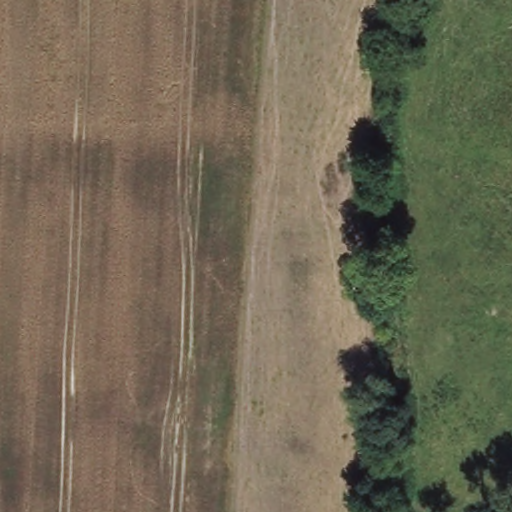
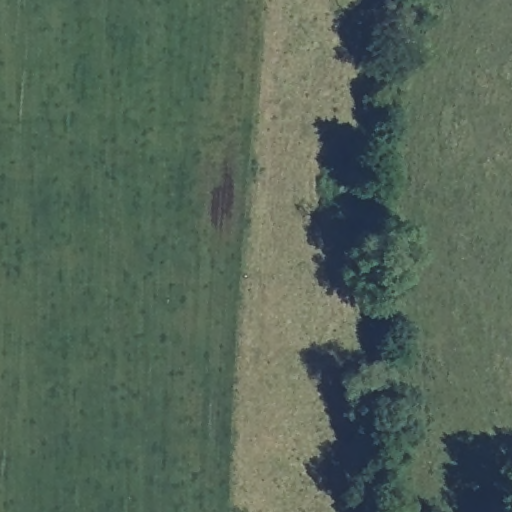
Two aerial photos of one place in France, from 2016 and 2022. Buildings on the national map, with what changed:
[]

